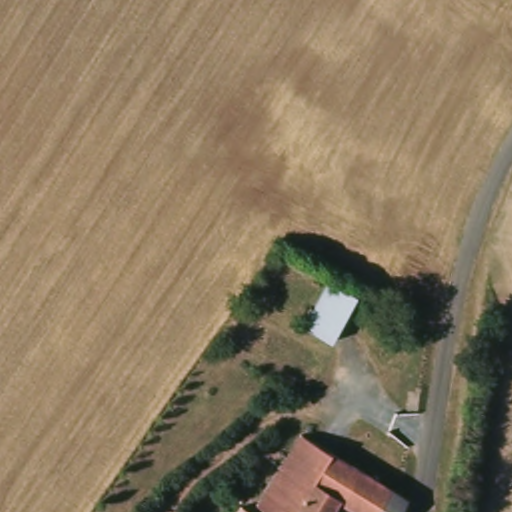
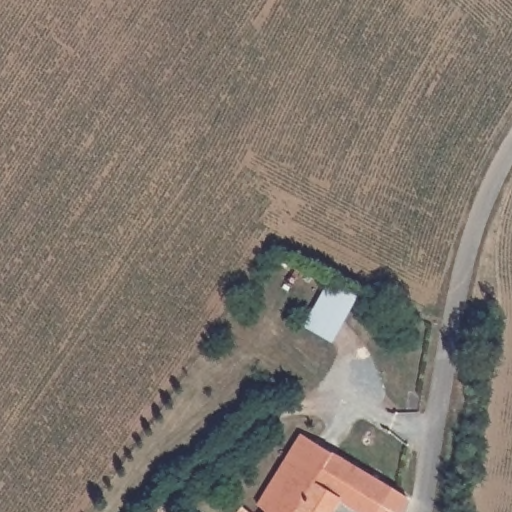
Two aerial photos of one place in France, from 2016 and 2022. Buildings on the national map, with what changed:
unchanged [(353,297),(331,340),(306,325),(328,284),(353,297)]
unchanged [(236,492),(244,498),(292,440),(317,453),(334,460),(382,483),(401,491),(391,512),(353,512),(339,506),(335,512),(223,512),(236,492)]

